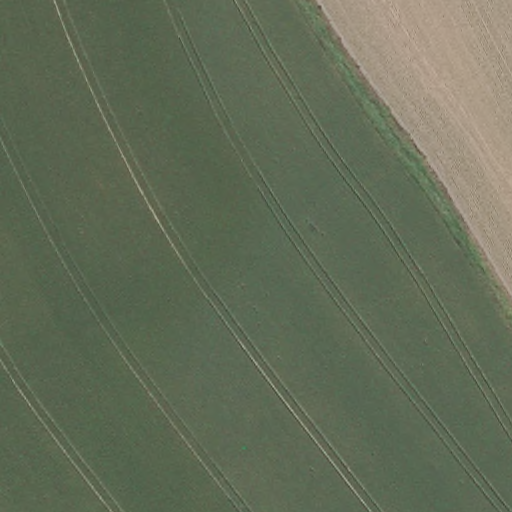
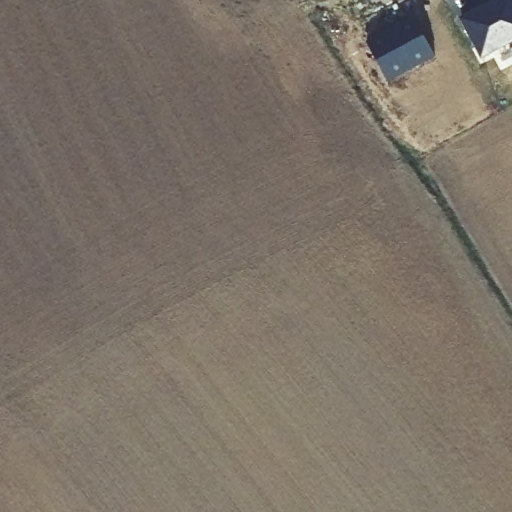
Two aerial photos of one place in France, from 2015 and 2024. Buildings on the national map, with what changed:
new [(475,10),(495,0),(511,0),(512,2),(512,40),(480,57),(459,17),(475,8),(475,10)]
new [(386,32),(387,35),(397,30),(395,27),(412,18),(432,55),(385,81),(365,44),(386,32)]

